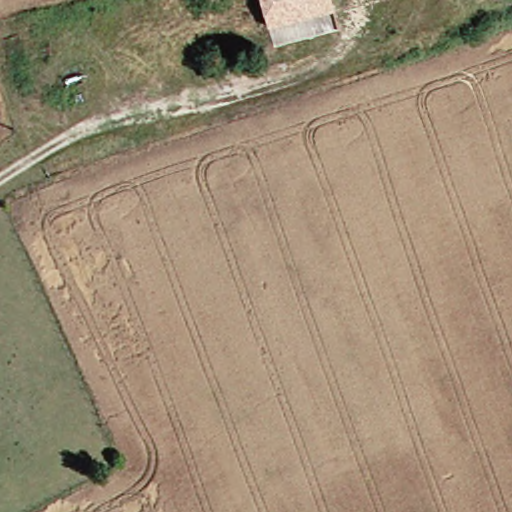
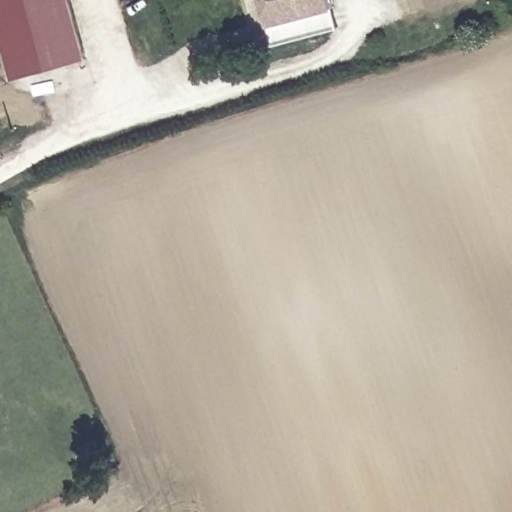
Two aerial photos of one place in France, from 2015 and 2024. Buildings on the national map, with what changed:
new [(88,59),(13,80),(0,33),(0,0),(71,0),(88,59)]
unchanged [(335,9),(269,26),(261,0),(333,0),(335,9)]

